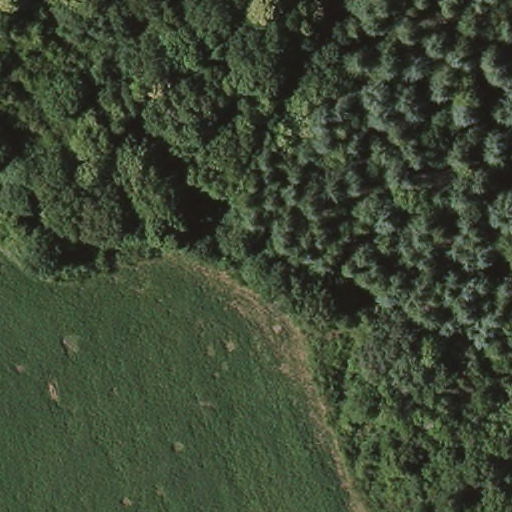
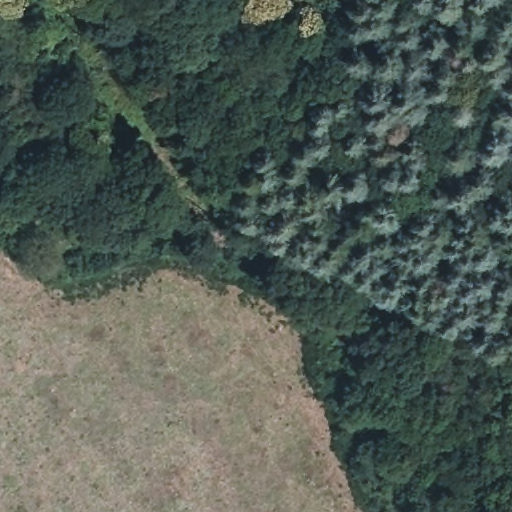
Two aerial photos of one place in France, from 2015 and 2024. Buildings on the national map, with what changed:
[]

